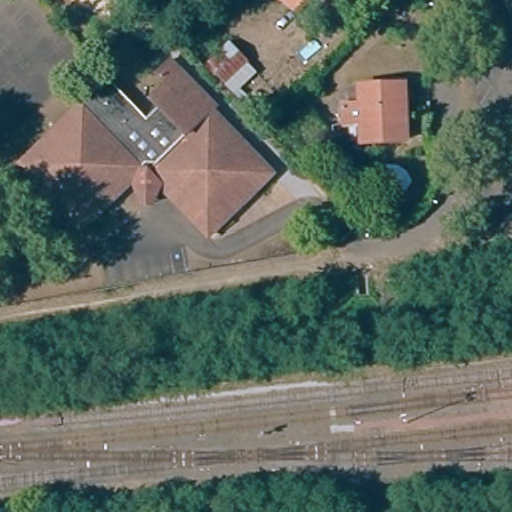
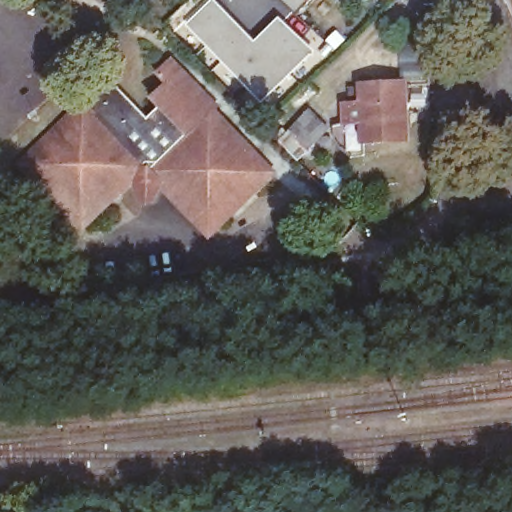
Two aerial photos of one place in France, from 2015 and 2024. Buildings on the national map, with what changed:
new [(208,0),(215,0),(254,39),(278,16),(315,52),(260,104),(183,24),(208,0)]
demolished [(254,0),(271,0),(261,10),(252,2),(254,0)]
unchanged [(299,3),(296,0),(303,0),(299,3)]
demolished [(239,89),(204,53),(224,31),(260,66),(239,89)]
new [(422,45),(424,77),(401,76),(398,47),(422,45)]
unchanged [(113,77),(153,117),(164,107),(155,97),(169,85),(156,72),(173,55),(222,104),(218,108),(279,169),(216,230),(150,167),(88,229),(24,165),(113,77)]
unchanged [(404,141),(362,141),(362,122),(344,122),(344,102),(361,102),(361,86),(404,86),(404,141)]
unchanged [(316,119),(327,130),(297,162),(286,151),(316,119)]

